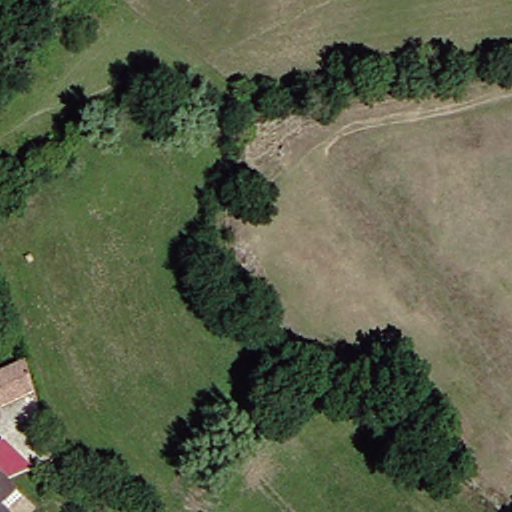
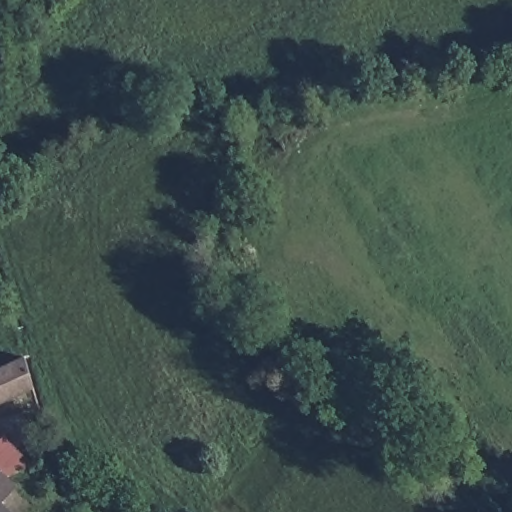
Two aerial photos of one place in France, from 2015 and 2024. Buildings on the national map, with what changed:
unchanged [(0,402),(0,366),(22,356),(32,388),(0,402)]
unchanged [(0,504),(0,479),(12,493),(0,504)]
unchanged [(0,511),(1,512),(0,512),(0,511)]

